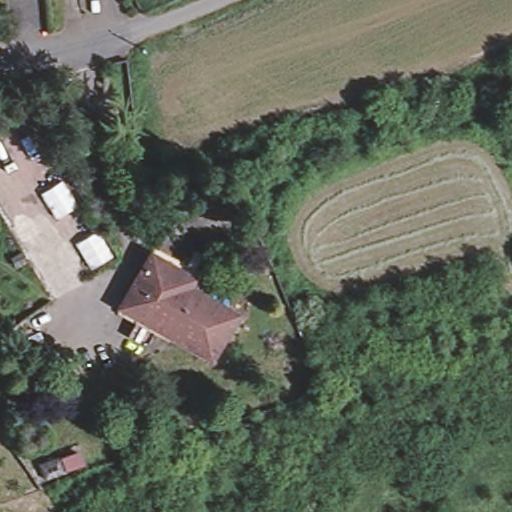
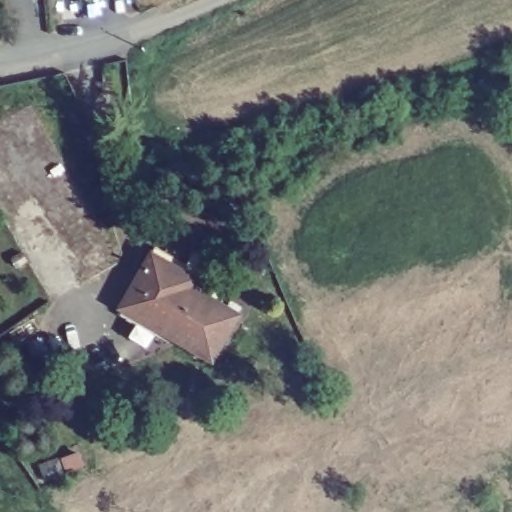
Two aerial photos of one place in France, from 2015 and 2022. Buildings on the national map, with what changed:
unchanged [(147,250),(175,265),(191,273),(186,283),(237,311),(212,357),(117,307),(135,272),(147,250)]

